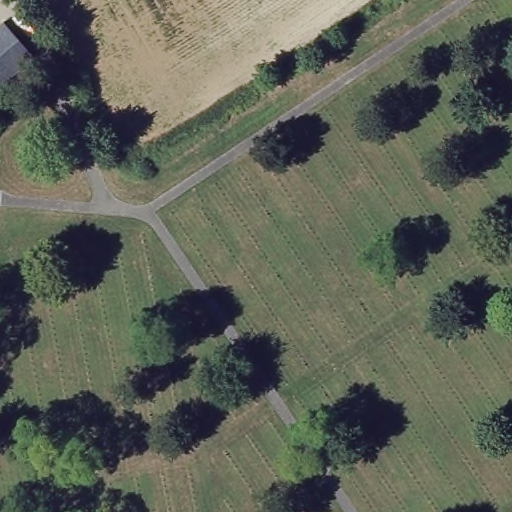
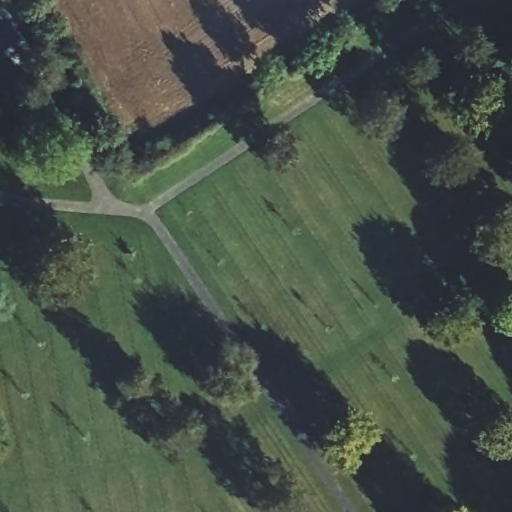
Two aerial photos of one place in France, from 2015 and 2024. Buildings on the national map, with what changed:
unchanged [(33,56),(0,85),(0,22),(1,21),(33,56)]

